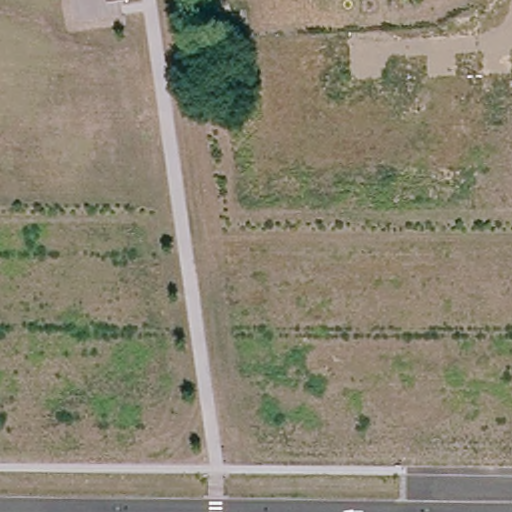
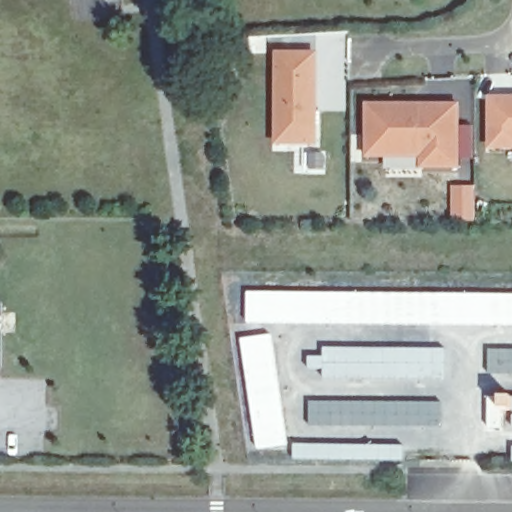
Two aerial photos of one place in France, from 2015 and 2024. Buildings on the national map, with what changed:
new [(316,143),(275,141),(276,50),(316,51),(316,143)]
new [(491,148),(490,100),(512,100),(512,148),(491,148)]
new [(420,166),(420,154),(367,155),(366,101),(457,101),(458,165),(420,166)]
new [(245,291),(512,293),(512,325),(477,325),(244,323),(245,291)]
new [(242,339),(271,334),(288,444),(258,449),(242,339)]
new [(446,379),(324,378),(324,369),(316,369),(316,357),(325,357),(325,348),(446,349),(446,379)]
new [(442,403),(442,427),(311,425),(311,402),(442,403)]
new [(295,459),(295,444),(404,446),(404,461),(295,459)]

